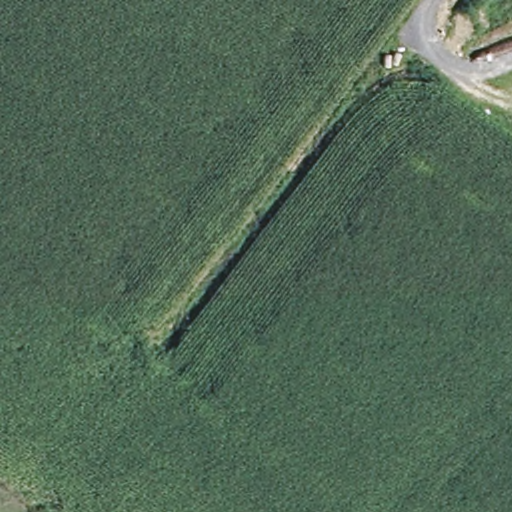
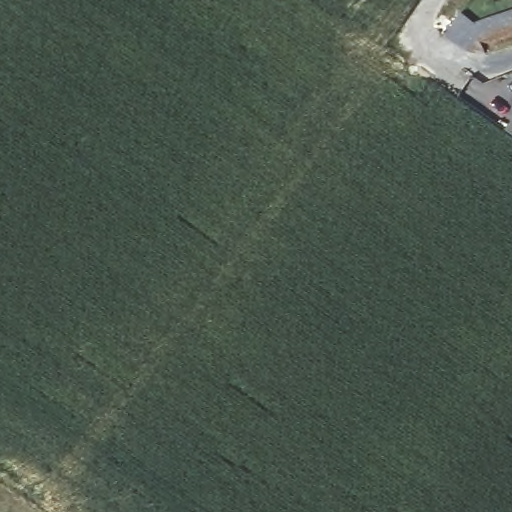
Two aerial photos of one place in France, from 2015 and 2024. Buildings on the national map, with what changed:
unchanged [(512,119),(512,130),(506,126),(512,119)]

